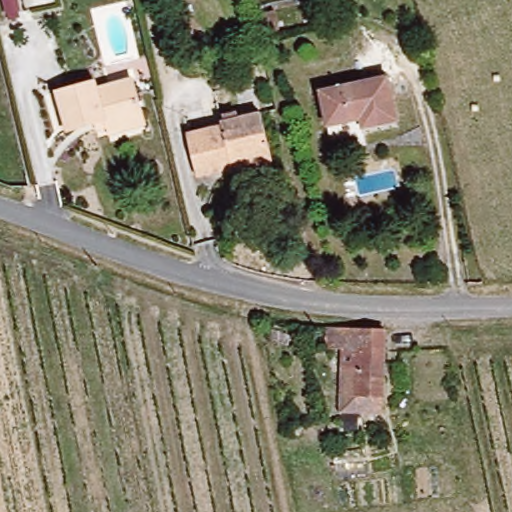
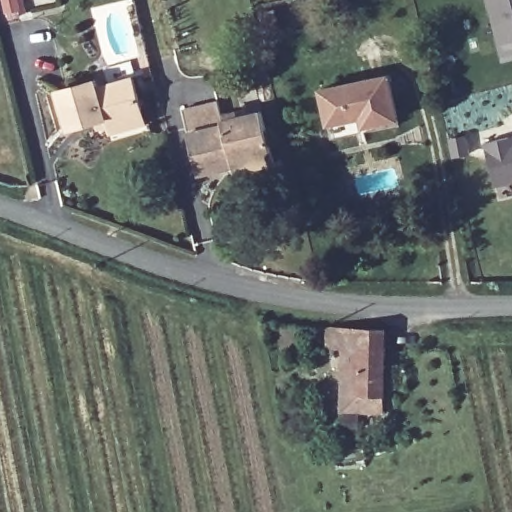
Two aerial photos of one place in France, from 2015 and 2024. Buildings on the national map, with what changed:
new [(488,0),(512,0),(512,55),(502,57),(488,0)]
unchanged [(279,1),(283,18),(271,21),(267,4),(279,1)]
unchanged [(111,135),(109,125),(97,127),(95,119),(69,125),(60,85),(96,77),(98,83),(131,76),(141,118),(143,128),(111,135)]
unchanged [(385,80),(395,123),(372,129),(370,117),(338,126),(339,129),(328,131),(318,97),(385,80)]
unchanged [(231,175),(230,169),(196,177),(186,133),(217,125),(215,117),(256,107),(267,149),(271,165),(231,175)]
new [(512,183),(496,186),(485,142),(512,135),(512,183)]
unchanged [(380,327),(377,410),(343,408),(345,359),(322,356),(323,333),(323,322),(380,327)]

